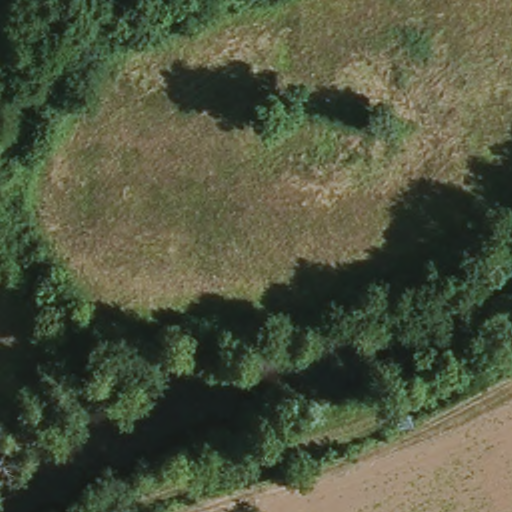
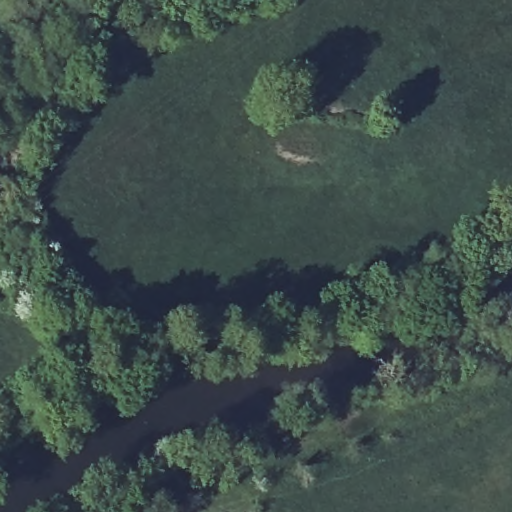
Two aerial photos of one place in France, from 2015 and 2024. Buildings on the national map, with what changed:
[]

